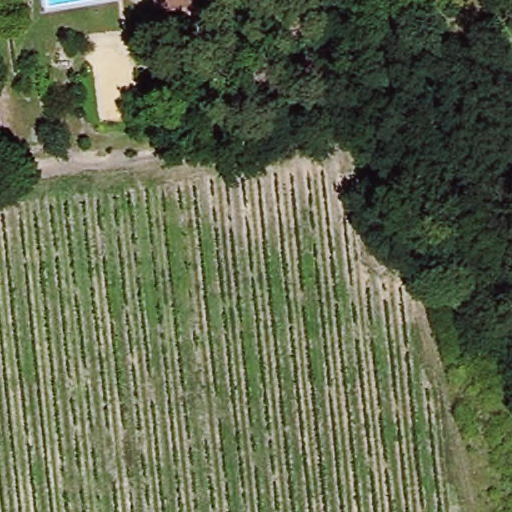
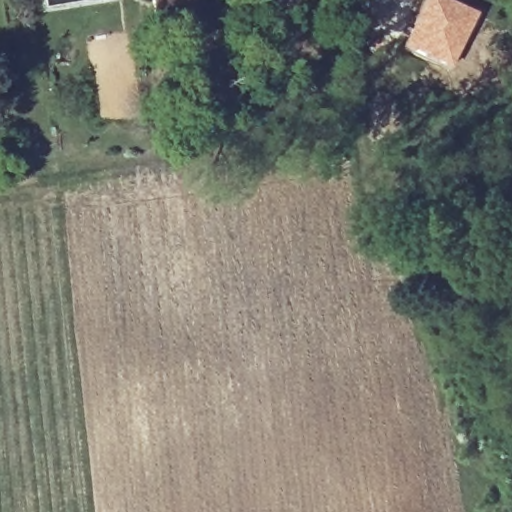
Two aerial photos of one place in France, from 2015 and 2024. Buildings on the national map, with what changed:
new [(424,0),(444,0),(476,15),(449,70),(401,47),(424,0)]
unchanged [(175,30),(173,21),(154,23),(151,5),(190,1),(192,27),(175,30)]

